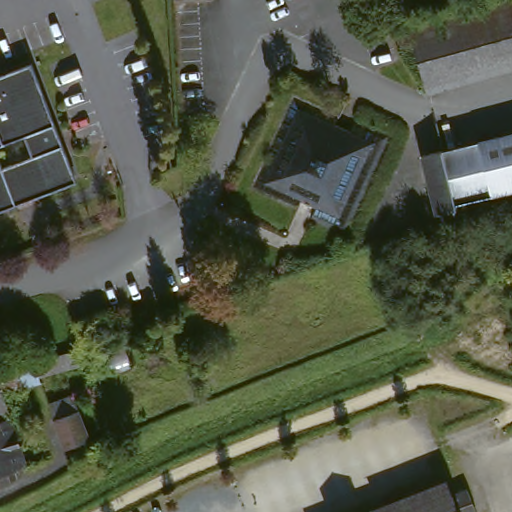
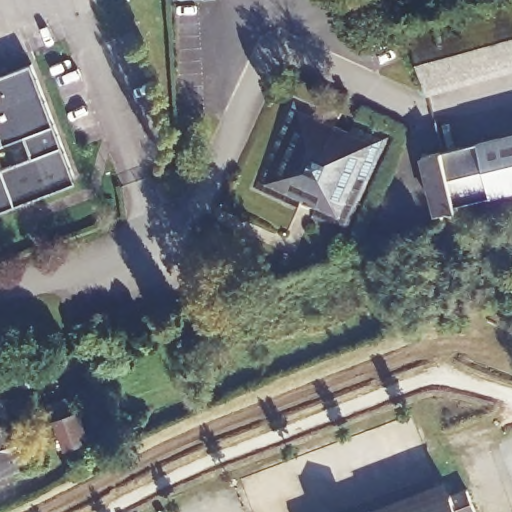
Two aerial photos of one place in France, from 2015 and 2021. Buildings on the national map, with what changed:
unchanged [(428,94),(407,27),(506,0),(512,0),(512,70),(428,94)]
unchanged [(69,179),(8,203),(11,210),(0,214),(0,77),(27,67),(69,179)]
unchanged [(295,115),(370,145),(338,220),(265,190),(295,115)]
unchanged [(455,205),(457,209),(438,214),(422,156),(441,151),(512,133),(512,190),(455,205)]
unchanged [(77,350),(71,330),(99,320),(106,340),(77,350)]
unchanged [(27,367),(77,352),(82,368),(32,382),(27,367)]
unchanged [(47,403),(71,395),(89,437),(66,448),(47,403)]
unchanged [(9,476),(10,484),(0,487),(0,404),(21,473),(9,476)]
unchanged [(446,476),(451,490),(395,512),(379,512),(375,503),(446,476)]
unchanged [(395,512),(451,490),(460,512),(395,512)]

